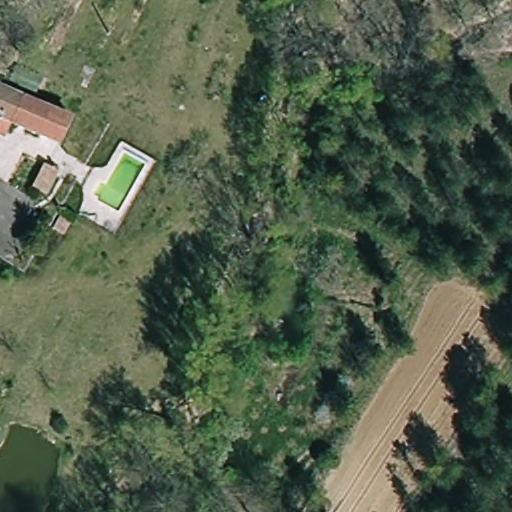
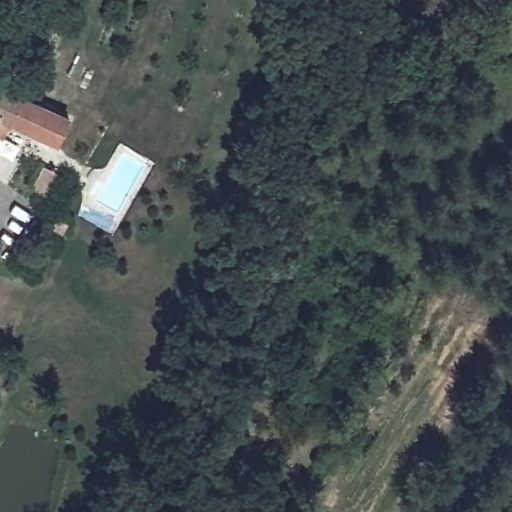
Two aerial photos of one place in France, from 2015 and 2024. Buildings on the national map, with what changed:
unchanged [(65,139),(10,115),(3,131),(0,129),(0,84),(75,117),(65,139)]
unchanged [(61,165),(41,201),(28,194),(49,158),(61,165)]

